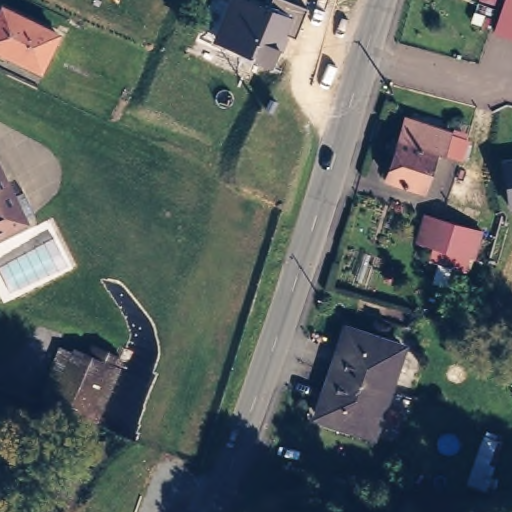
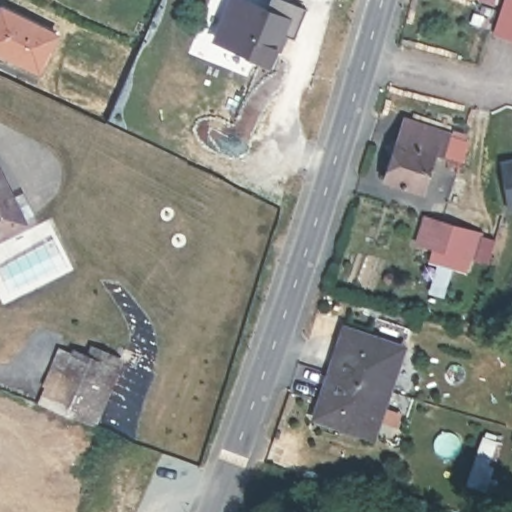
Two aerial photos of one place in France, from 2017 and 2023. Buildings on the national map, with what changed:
unchanged [(266,0),(285,0),(308,10),(296,36),(288,31),(270,69),(209,41),(226,0),(249,0),(263,6),(266,0)]
unchanged [(497,36),(508,0),(512,0),(512,40),(497,36)]
unchanged [(58,38),(40,73),(0,51),(0,16),(3,9),(58,38)]
unchanged [(384,177),(403,118),(451,135),(465,139),(460,159),(432,152),(420,189),(384,177)]
unchanged [(507,211),(499,160),(512,158),(512,210),(507,211)]
unchanged [(0,235),(0,160),(31,219),(0,235)]
unchanged [(481,233),(467,276),(428,265),(433,249),(412,243),(423,214),(481,233)]
unchanged [(353,330),(407,349),(393,391),(365,382),(338,374),(353,330)]
unchanged [(117,367),(100,407),(46,390),(60,347),(117,367)]
unchanged [(365,382),(393,391),(378,436),(323,417),(338,374),(365,382)]

